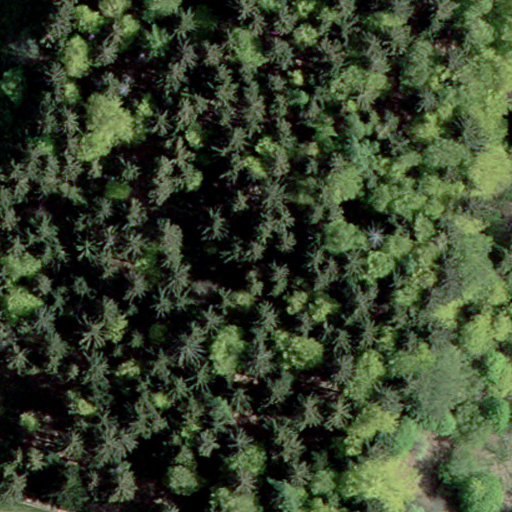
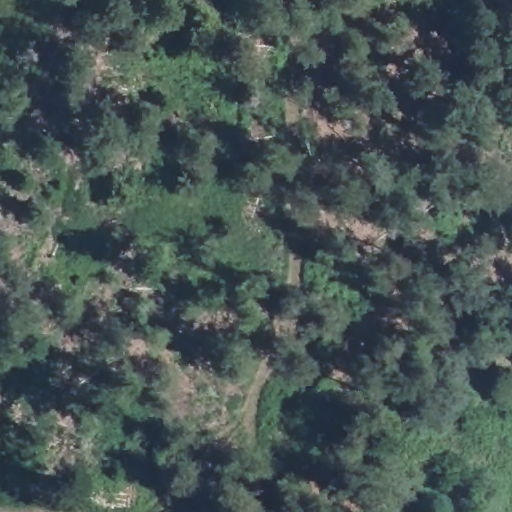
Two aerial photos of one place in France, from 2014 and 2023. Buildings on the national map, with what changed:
[]

